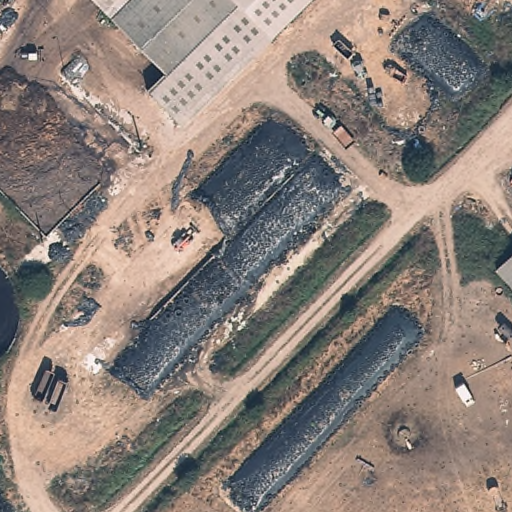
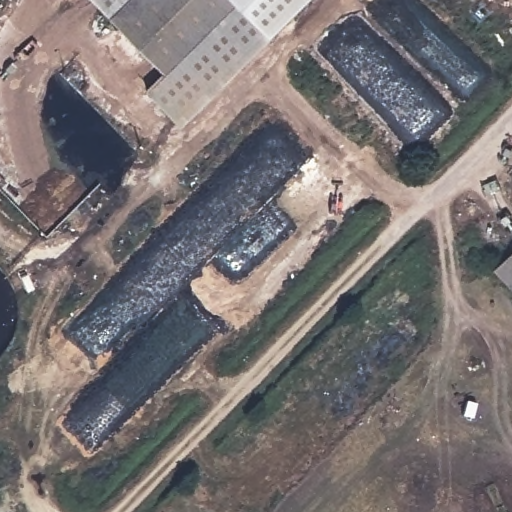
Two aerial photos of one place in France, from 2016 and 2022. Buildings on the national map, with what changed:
unchanged [(95,0),(140,0),(117,22),(95,0)]
unchanged [(181,129),(145,95),(160,80),(111,28),(140,0),(307,0),(181,129)]
unchanged [(494,270),(512,253),(512,292),(511,292),(494,270)]
unchanged [(512,293),(511,292),(512,292),(512,293)]

